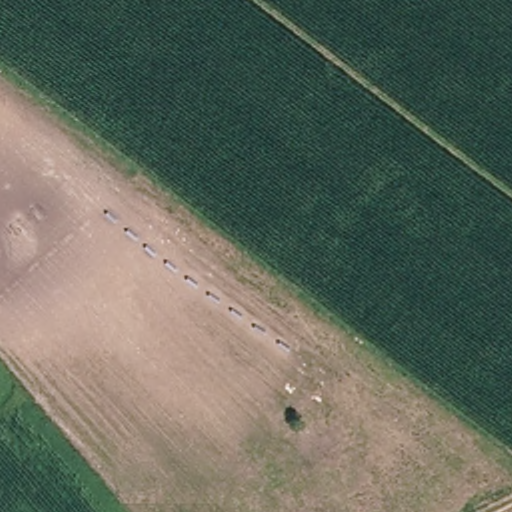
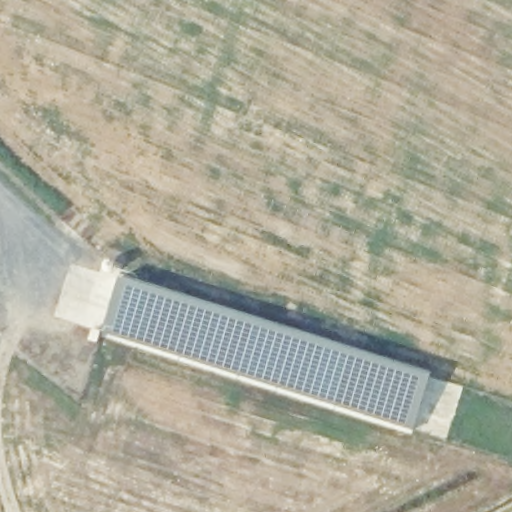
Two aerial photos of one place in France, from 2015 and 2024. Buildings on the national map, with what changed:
new [(100,333),(117,277),(428,377),(412,430),(100,333)]

